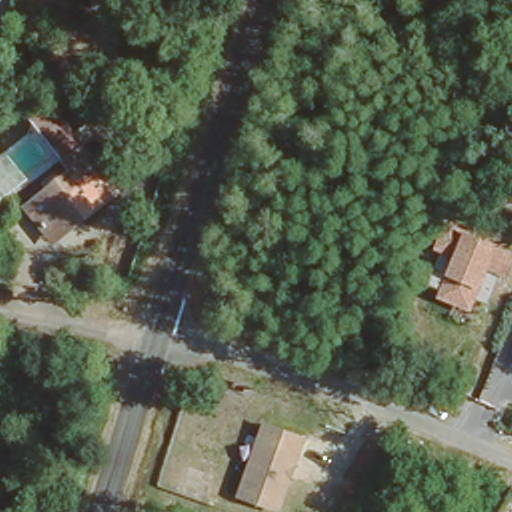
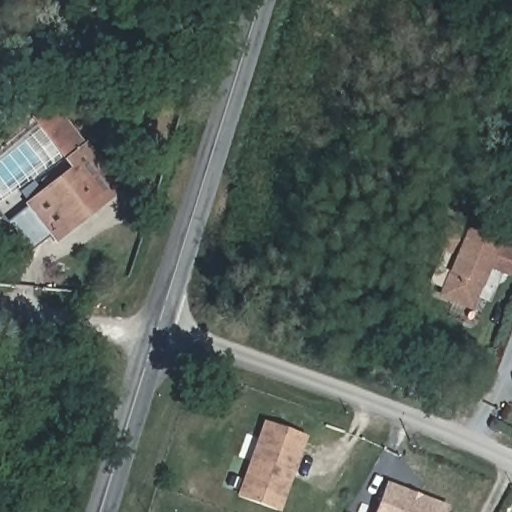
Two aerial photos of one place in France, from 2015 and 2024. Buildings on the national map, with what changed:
unchanged [(50,98),(125,200),(56,248),(24,202),(69,168),(27,115),(50,98)]
unchanged [(466,227),(501,243),(512,249),(512,278),(512,279),(502,276),(491,302),(475,298),(469,311),(442,300),(446,290),(429,285),(443,247),(456,252),(466,227)]
unchanged [(280,512),(237,498),(263,421),(308,436),(282,512),(280,512)]
new [(374,512),(386,482),(448,505),(446,512),(374,512)]

